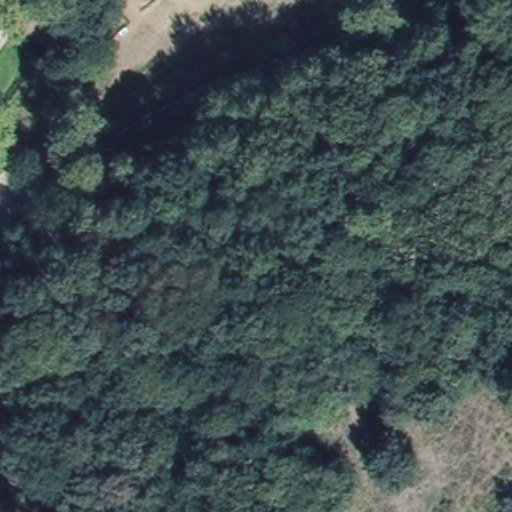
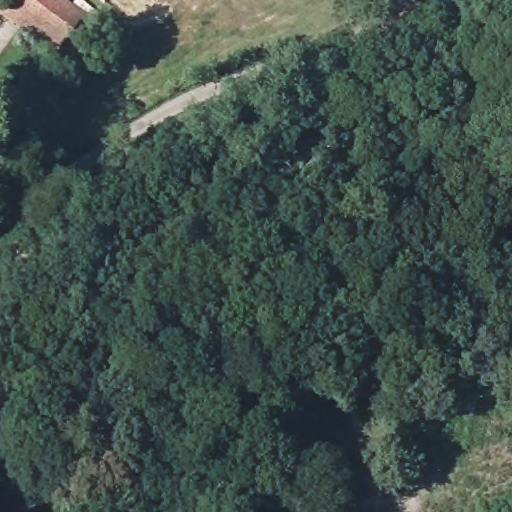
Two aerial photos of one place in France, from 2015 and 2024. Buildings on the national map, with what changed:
new [(66,0),(85,13),(57,50),(0,14),(0,10),(7,0),(66,0)]
demolished [(33,30),(47,8),(74,28),(58,50),(33,30)]

